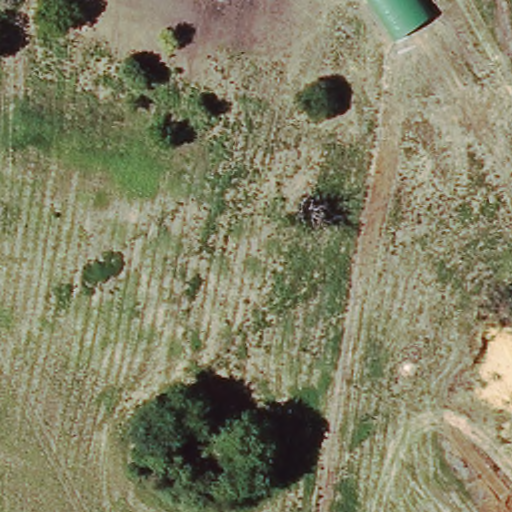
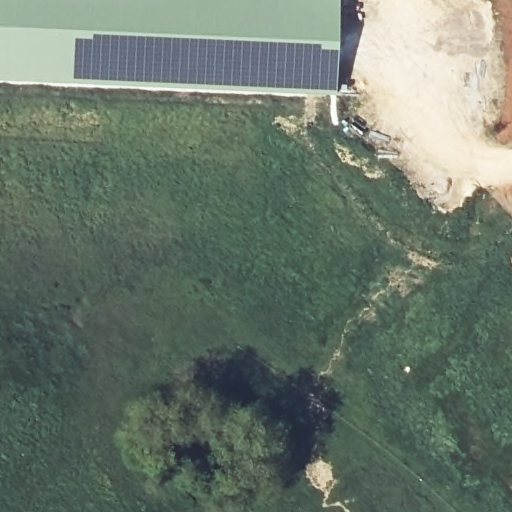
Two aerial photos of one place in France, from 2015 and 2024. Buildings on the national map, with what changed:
new [(338,0),(335,94),(0,80),(0,0),(338,0)]
demolished [(417,0),(430,19),(392,44),(364,0),(417,0)]

